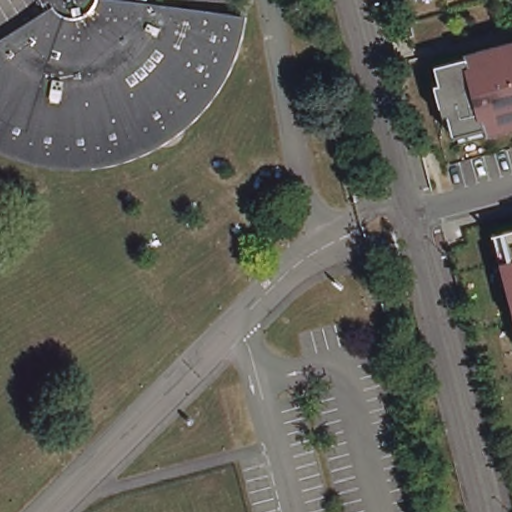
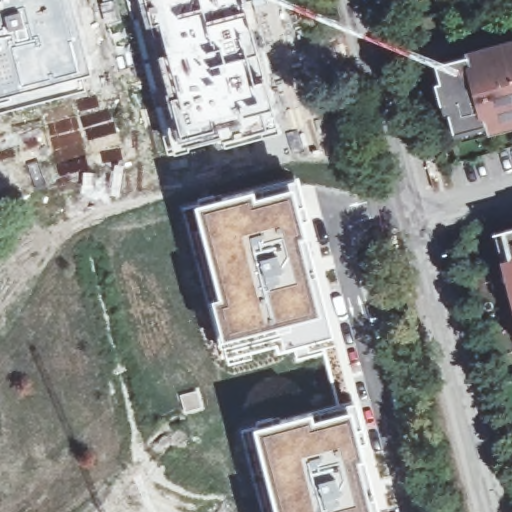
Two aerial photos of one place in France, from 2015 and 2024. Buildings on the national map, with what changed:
new [(0,0),(75,0),(94,71),(56,81),(59,92),(0,108),(0,0)]
demolished [(230,60),(225,73),(219,85),(212,95),(204,107),(194,118),(183,128),(172,136),(162,142),(150,149),(135,156),(121,160),(105,165),(95,165),(82,166),(72,166),(59,165),(48,163),(37,160),(26,157),(15,153),(7,149),(0,145),(0,57),(53,23),(44,6),(62,0),(113,0),(112,11),(237,27),(237,36),(233,50),(230,60)]
new [(250,16),(280,132),(223,147),(221,141),(172,154),(165,124),(173,122),(157,52),(160,51),(154,25),(147,27),(139,0),(244,0),(250,16)]
unchanged [(454,138),(436,70),(512,49),(512,120),(454,138)]
new [(255,187),(255,191),(297,179),(310,241),(329,306),(336,343),(324,346),(325,352),(295,360),(291,348),(280,351),(277,343),(225,361),(217,337),(210,297),(217,295),(195,203),(255,187)]
new [(500,261),(509,259),(502,231),(512,229),(512,309),(500,261)]
new [(315,414),(350,405),(381,512),(273,512),(252,425),(313,408),(315,414)]

